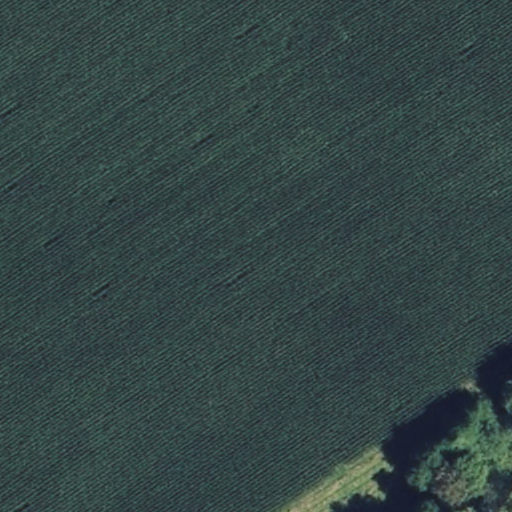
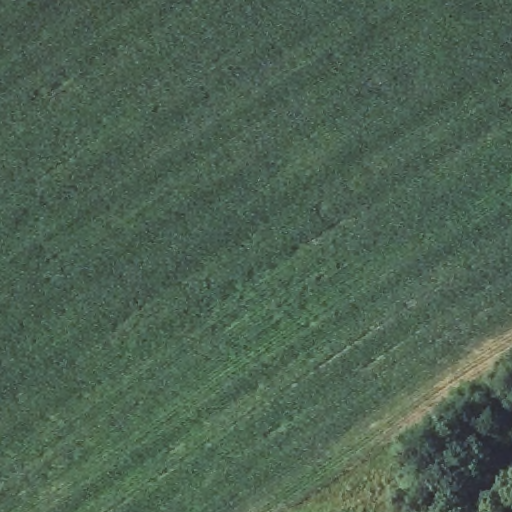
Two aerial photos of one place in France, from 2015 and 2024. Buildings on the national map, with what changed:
[]

